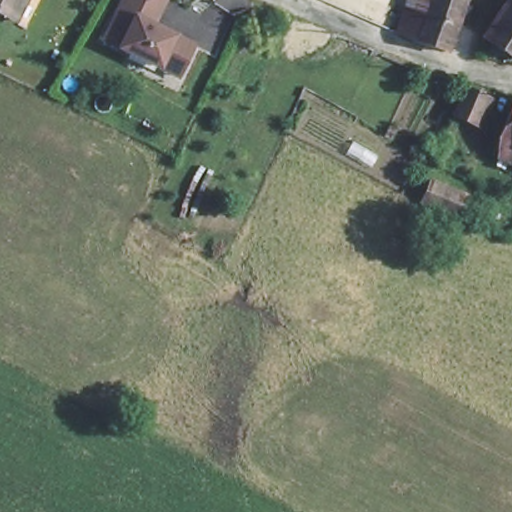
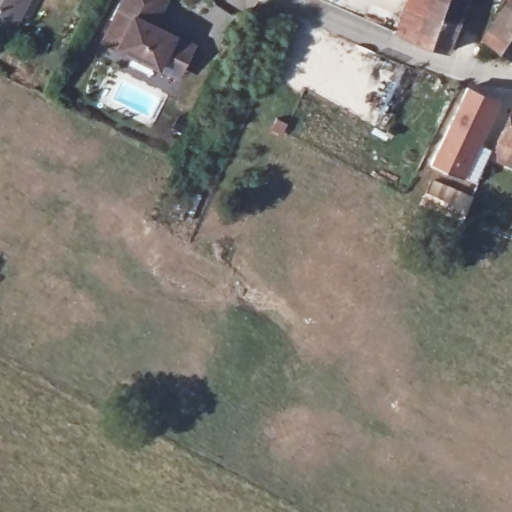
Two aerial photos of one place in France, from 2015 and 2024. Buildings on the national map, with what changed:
unchanged [(0,9),(0,0),(24,0),(15,17),(0,9)]
unchanged [(107,40),(125,0),(160,0),(150,22),(196,42),(187,63),(183,73),(164,64),(107,40)]
unchanged [(393,33),(405,3),(421,9),(425,0),(463,0),(456,20),(447,49),(411,39),(393,33)]
unchanged [(509,0),(512,0),(512,44),(488,27),(509,0)]
new [(431,161),(467,85),(502,101),(464,177),(431,161)]
demolished [(470,86),(477,87),(491,94),(480,121),(459,112),(470,86)]
unchanged [(507,136),(500,132),(512,107),(512,156),(501,151),(507,136)]
unchanged [(431,180),(470,194),(461,215),(422,200),(431,180)]

